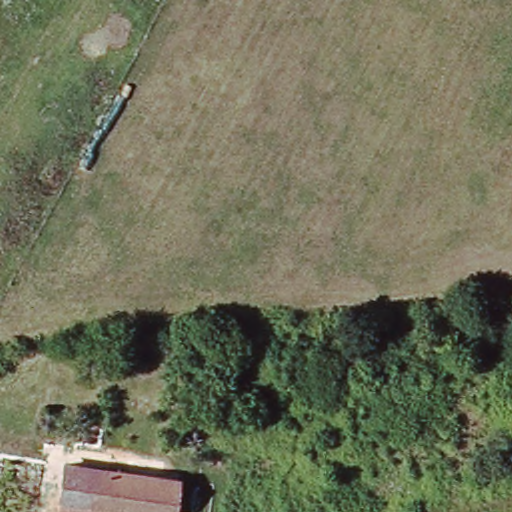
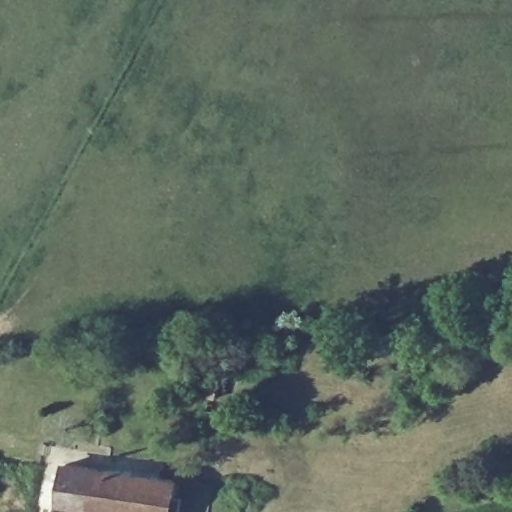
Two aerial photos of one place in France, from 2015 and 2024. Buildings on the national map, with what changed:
unchanged [(157,511),(157,512),(55,512),(61,470),(175,477),(169,512),(165,512),(157,511)]

